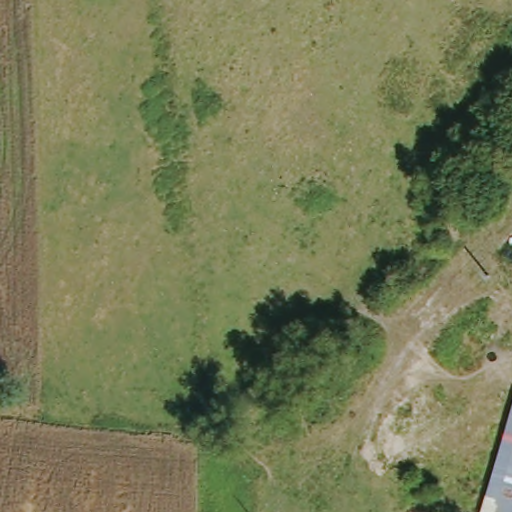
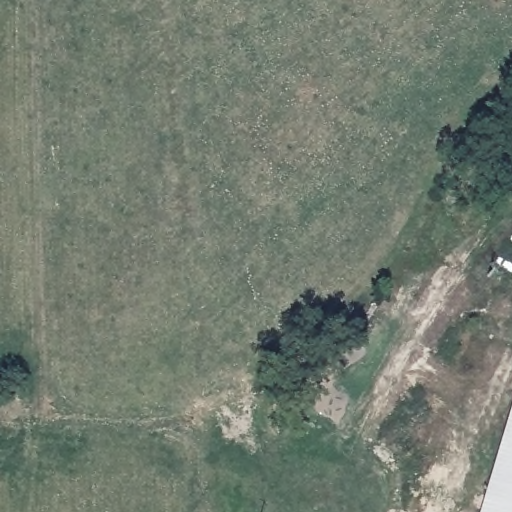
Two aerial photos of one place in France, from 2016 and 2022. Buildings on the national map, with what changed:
unchanged [(512,417),(512,512),(482,512),(505,437),(512,417)]

